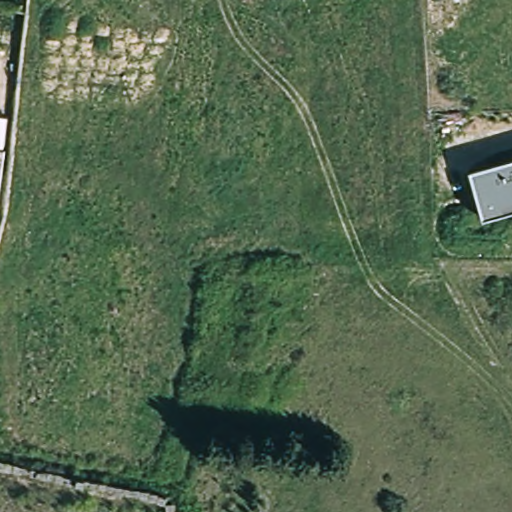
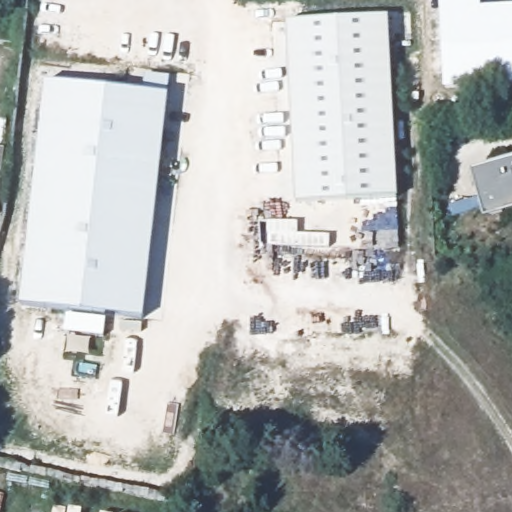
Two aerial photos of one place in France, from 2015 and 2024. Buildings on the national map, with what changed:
new [(480,14),(512,13),(512,89),(445,92),(441,0),(479,0),(480,14)]
new [(384,13),(396,194),(295,201),(283,20),(384,13)]
new [(140,93),(143,74),(169,78),(167,96),(143,319),(19,305),(44,82),(140,93)]
unchanged [(471,185),(466,167),(486,161),(512,154),(512,206),(479,215),(471,185)]

